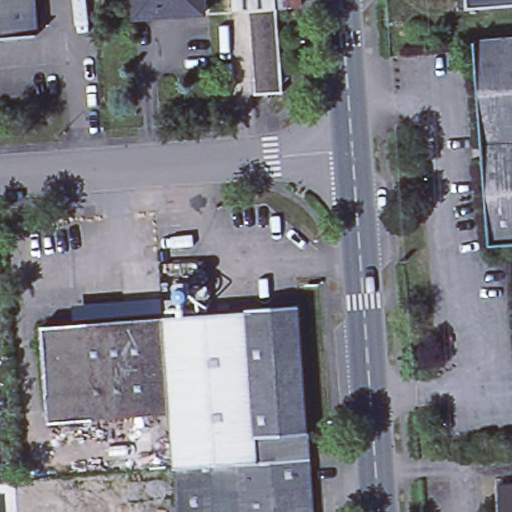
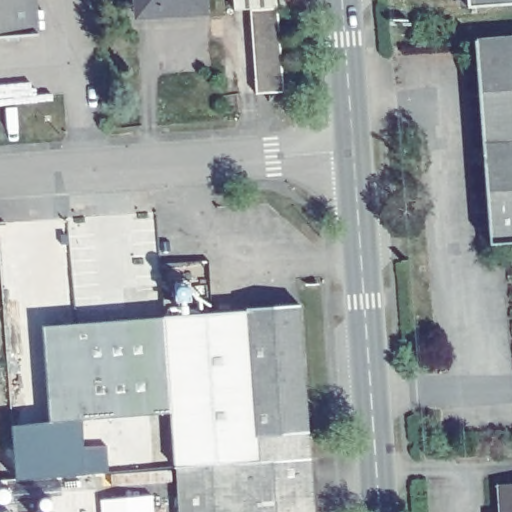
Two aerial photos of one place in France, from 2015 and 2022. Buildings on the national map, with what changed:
unchanged [(44,32),(0,35),(0,0),(42,0),(44,32)]
unchanged [(216,17),(137,22),(137,0),(214,0),(216,17)]
unchanged [(250,0),(306,0),(307,11),(284,12),(251,14),(250,0)]
unchanged [(512,3),(469,6),(468,0),(512,0),(512,3)]
unchanged [(287,91),(257,94),(251,14),(284,12),(287,91)]
unchanged [(483,38),(512,36),(512,243),(495,243),(483,38)]
unchanged [(78,305),(165,298),(166,314),(305,306),(316,433),(282,433),(286,462),(319,459),(321,512),(185,512),(174,415),(52,422),(45,326),(80,324),(78,305)]
new [(83,420),(85,446),(107,446),(110,473),(17,480),(15,426),(52,422),(83,420)]
unchanged [(512,484),(512,512),(503,512),(500,484),(512,484)]

